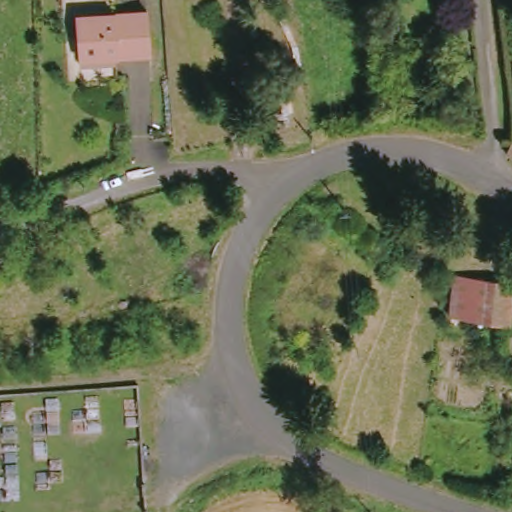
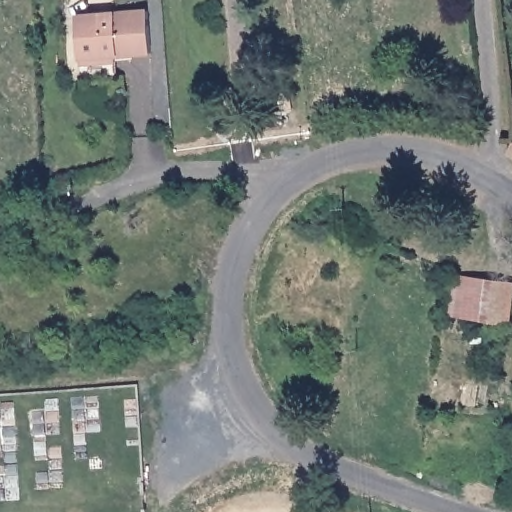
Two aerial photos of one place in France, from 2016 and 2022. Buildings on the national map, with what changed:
unchanged [(84,66),(84,59),(82,15),(154,10),(155,54),(118,56),(119,65),(84,66)]
unchanged [(283,111),(266,114),(265,102),(283,101),(283,111)]
unchanged [(504,145),(508,134),(512,136),(512,151),(504,145)]
unchanged [(455,318),(462,275),(512,282),(512,326),(455,318)]

